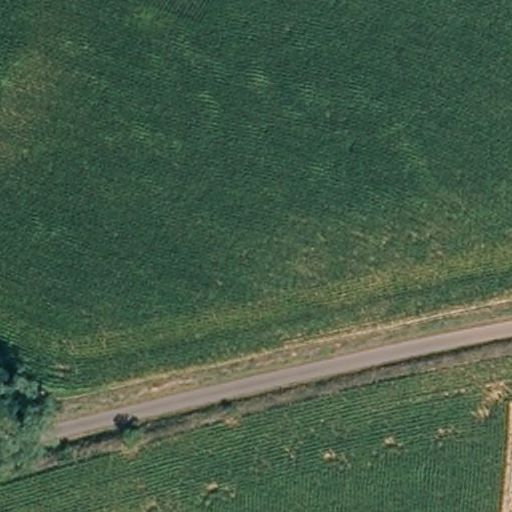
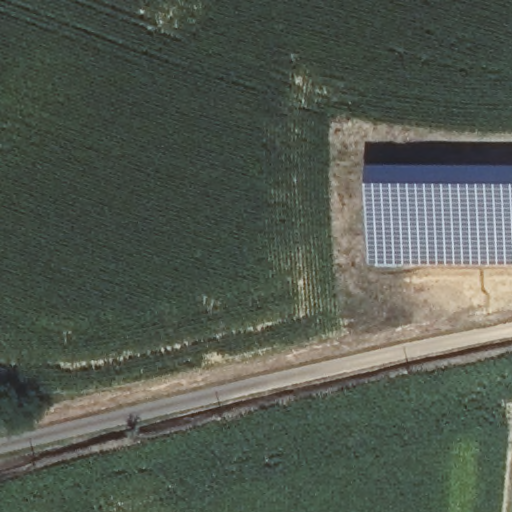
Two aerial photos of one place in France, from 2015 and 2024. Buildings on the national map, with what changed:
new [(371,264),(372,165),(512,166),(512,266),(371,264)]

